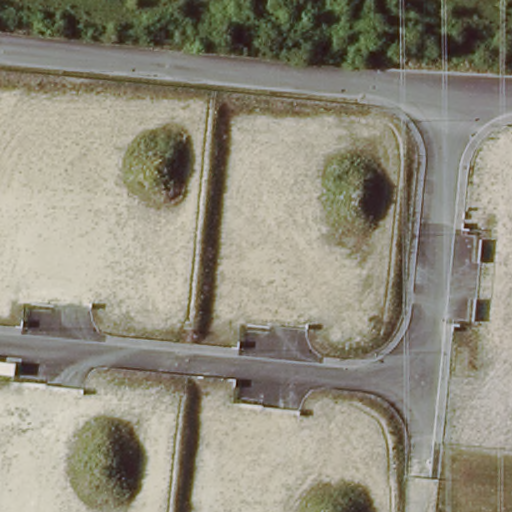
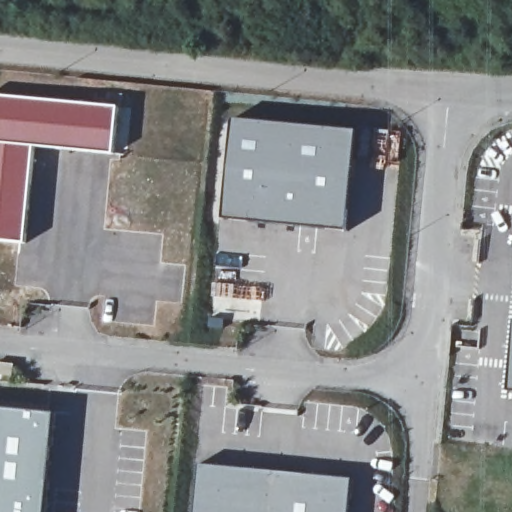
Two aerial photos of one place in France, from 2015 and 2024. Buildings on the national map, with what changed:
new [(36,146),(27,243),(0,240),(0,96),(120,106),(115,154),(36,146)]
new [(223,216),(235,118),(359,131),(348,229),(223,216)]
new [(0,408),(56,413),(47,512),(0,512),(0,408)]
new [(201,463),(354,478),(350,512),(196,512),(201,463)]

